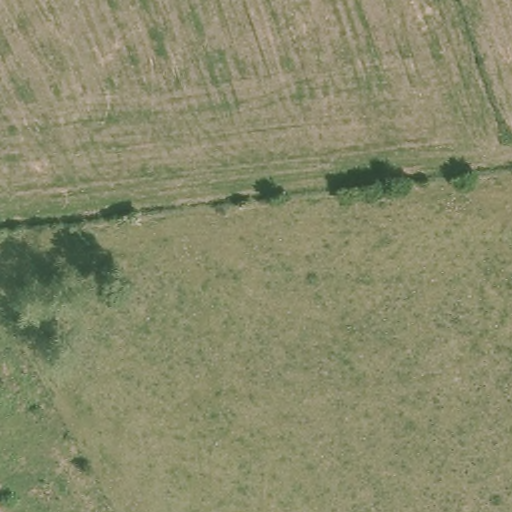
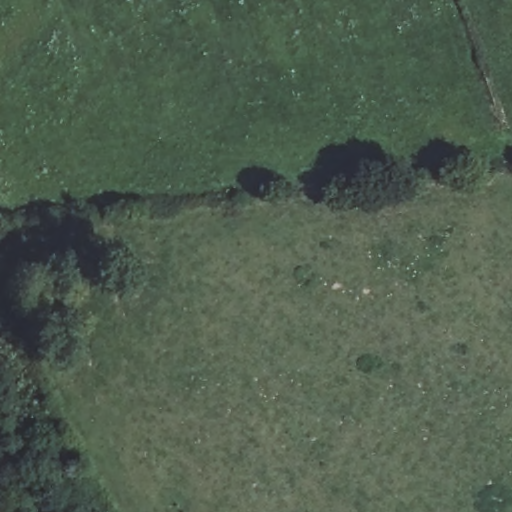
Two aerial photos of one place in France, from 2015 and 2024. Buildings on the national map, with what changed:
[]

